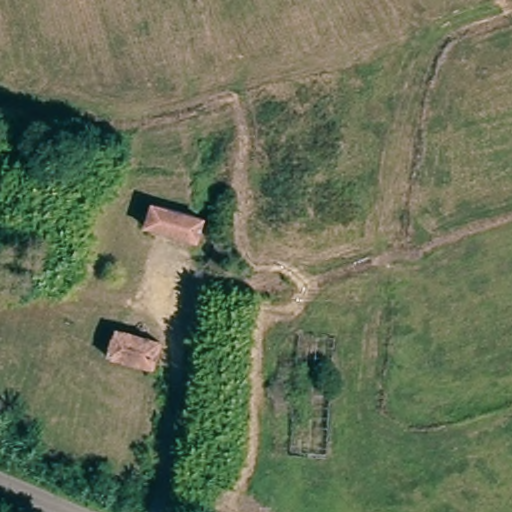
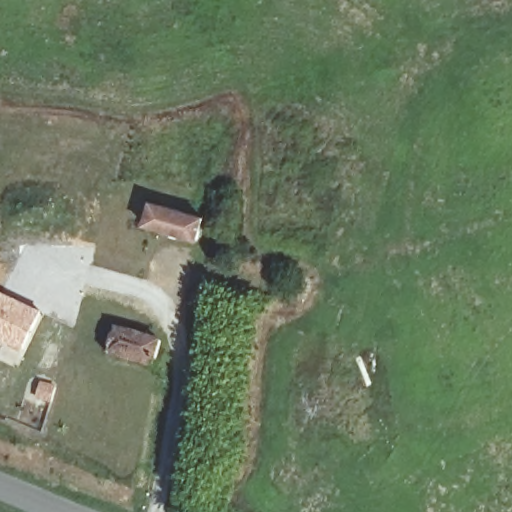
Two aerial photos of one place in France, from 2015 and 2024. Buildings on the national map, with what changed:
unchanged [(162,207),(201,216),(196,238),(158,230),(162,207)]
new [(0,340),(0,290),(41,311),(23,351),(0,340)]
unchanged [(166,367),(117,357),(119,352),(123,333),(172,343),(170,355),(166,367)]

